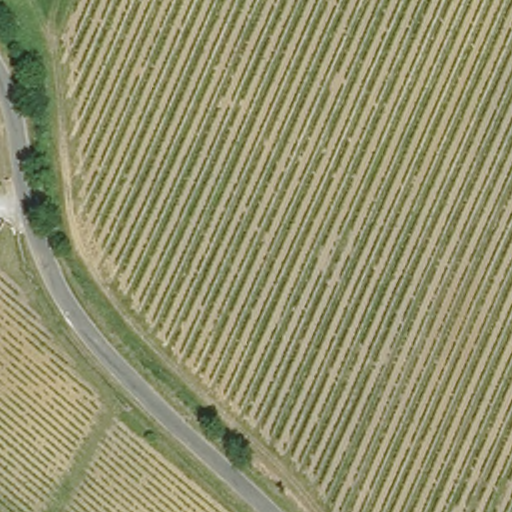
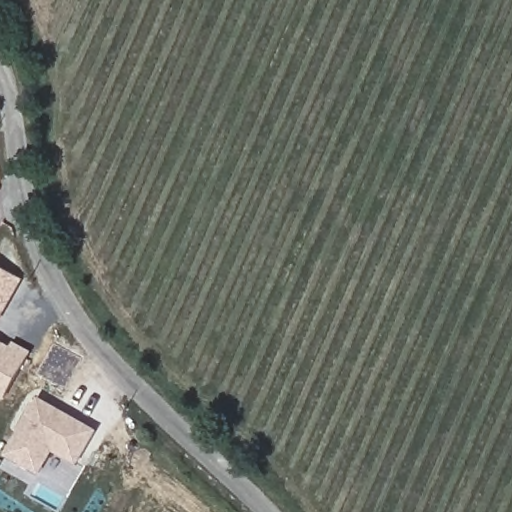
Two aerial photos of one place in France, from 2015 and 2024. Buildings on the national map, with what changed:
new [(24,280),(0,319),(0,267),(24,280)]
new [(11,346),(14,342),(32,352),(5,401),(0,398),(0,340),(11,346)]
new [(41,476),(5,456),(38,397),(95,429),(77,466),(54,453),(41,476)]

